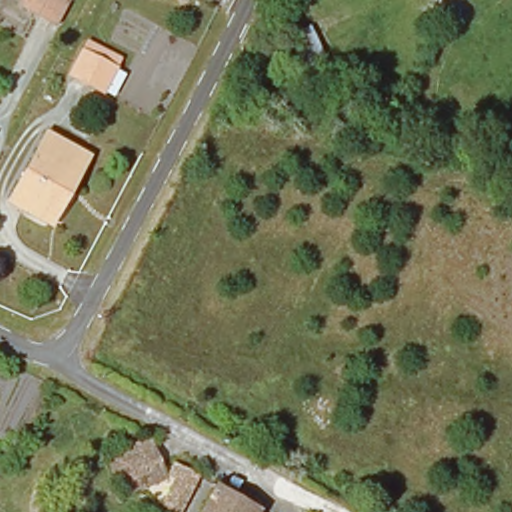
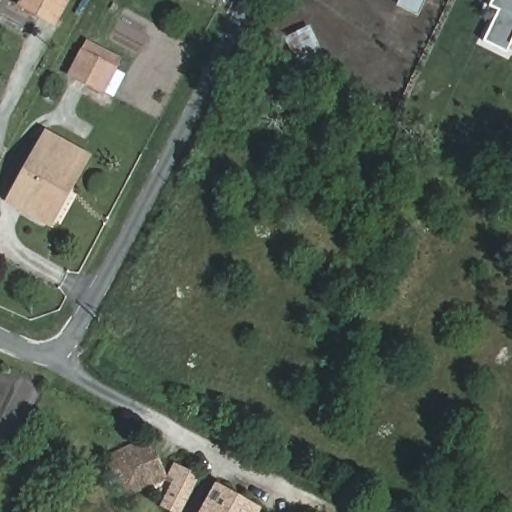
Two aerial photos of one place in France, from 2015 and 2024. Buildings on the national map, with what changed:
unchanged [(23,0),(68,0),(55,23),(21,4),(23,0)]
new [(508,48),(507,53),(483,42),(498,11),(489,8),(493,0),(512,0),(512,50),(508,48)]
unchanged [(72,84),(83,63),(87,53),(121,69),(116,79),(104,101),(72,84)]
unchanged [(50,224),(16,206),(52,140),(92,162),(76,189),(56,227),(50,224)]
unchanged [(155,438),(172,481),(128,499),(111,456),(155,438)]
unchanged [(167,506),(182,478),(176,474),(180,466),(202,478),(186,512),(179,512),(167,506)]
unchanged [(220,487),(263,511),(263,512),(205,512),(220,487)]

